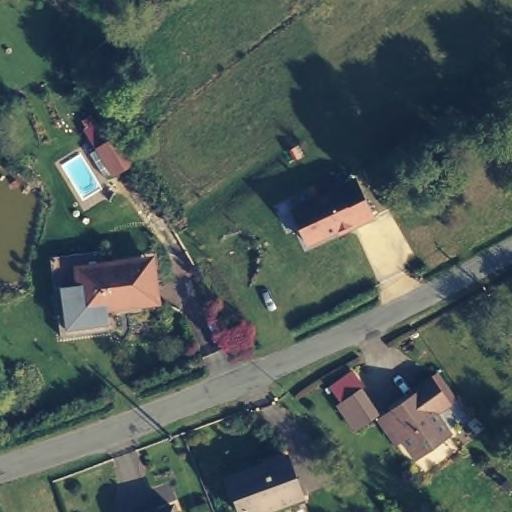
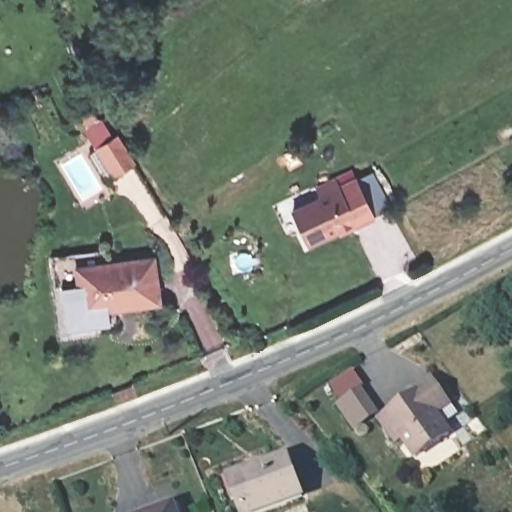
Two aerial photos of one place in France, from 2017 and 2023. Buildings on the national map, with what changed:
unchanged [(112,179),(94,150),(117,137),(118,139),(131,160),(134,165),(112,179)]
unchanged [(338,236),(310,249),(289,210),(318,196),(313,186),(334,176),(338,182),(355,176),(373,218),(338,236)]
unchanged [(150,258),(151,263),(155,298),(84,307),(79,267),(120,262),(150,258)]
unchanged [(446,438),(412,460),(395,433),(389,437),(373,412),(380,408),(414,387),(411,383),(432,370),(449,396),(428,410),(432,416),(446,438)]
unchanged [(308,490),(267,512),(245,512),(225,477),(283,446),(308,490)]
unchanged [(179,512),(135,512),(169,493),(179,512)]

